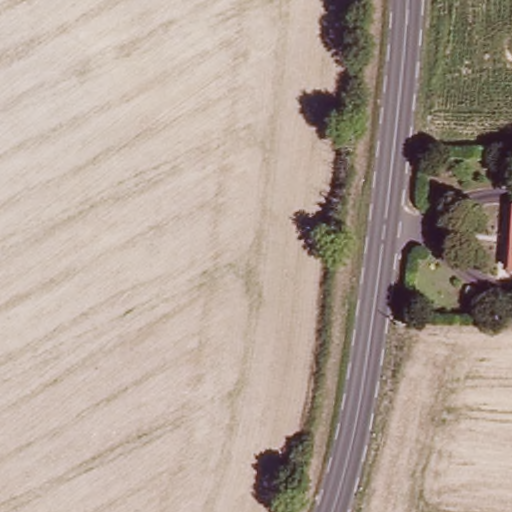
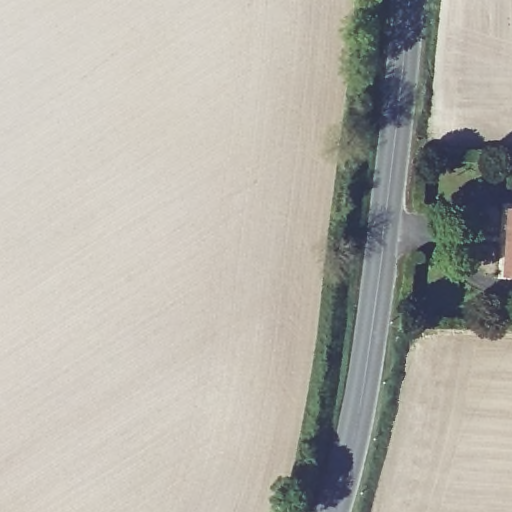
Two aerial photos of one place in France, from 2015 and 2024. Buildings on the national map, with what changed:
unchanged [(512,216),(512,275),(508,274),(512,216)]

